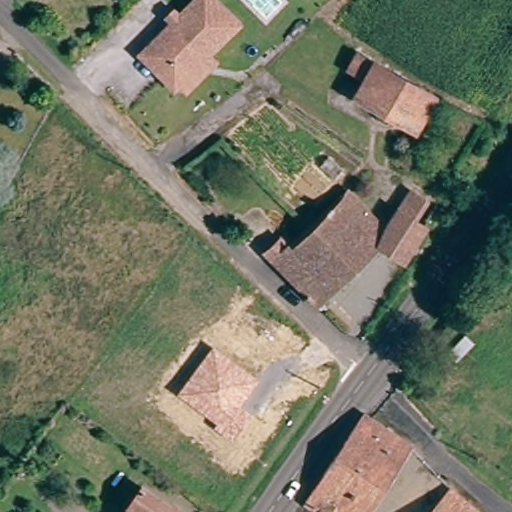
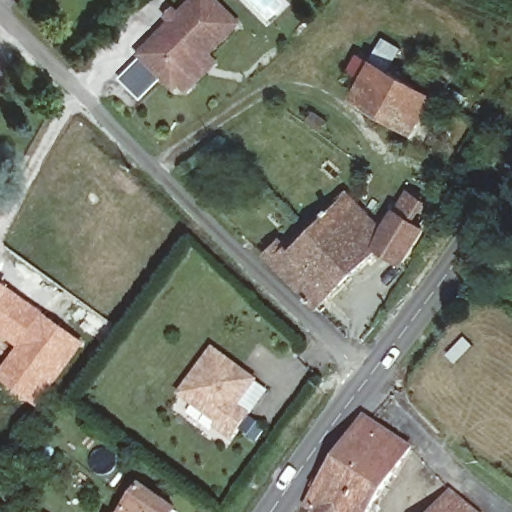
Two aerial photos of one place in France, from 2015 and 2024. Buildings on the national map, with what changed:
unchanged [(171,20),(181,9),(184,13),(197,0),(222,0),(247,27),(217,57),(224,63),(194,94),(187,88),(180,94),(143,55),(173,23),(171,20)]
unchanged [(379,60),(436,97),(416,132),(355,95),(379,60)]
unchanged [(281,247),(287,255),(352,196),(386,224),(420,177),(440,191),(420,220),(435,232),(406,272),(378,255),(319,311),(272,268),(266,261),(281,247)]
new [(86,345),(39,410),(0,381),(0,373),(17,349),(0,336),(0,283),(86,345)]
unchanged [(214,347),(260,380),(242,407),(253,414),(234,443),(214,429),(219,423),(177,395),(214,347)]
unchanged [(417,451),(372,512),(325,512),(309,499),(371,417),(417,451)]
unchanged [(152,485),(186,512),(132,512),(152,485)]
unchanged [(477,512),(438,512),(455,492),(477,512)]
unchanged [(42,509),(46,512),(40,512),(42,509)]

